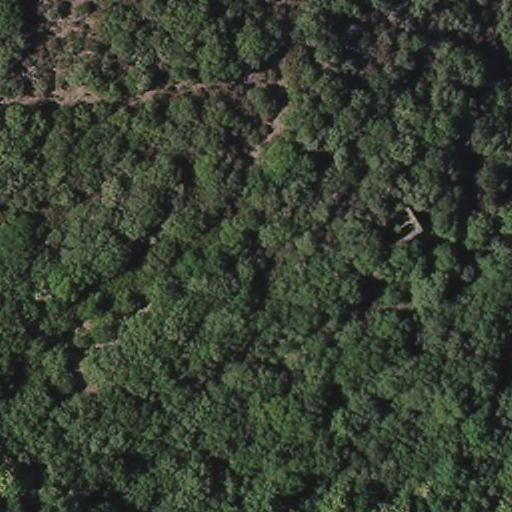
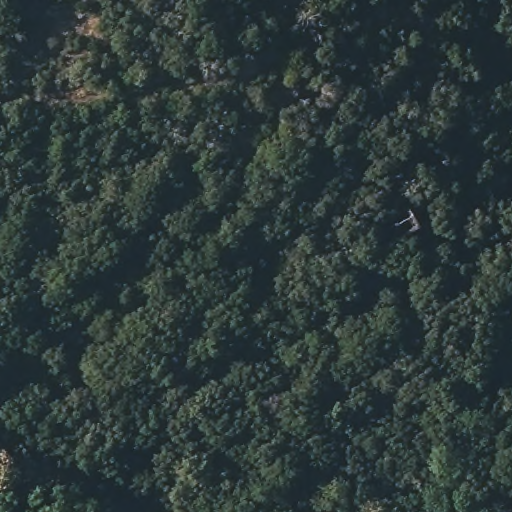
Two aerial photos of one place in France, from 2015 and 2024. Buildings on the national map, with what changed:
unchanged [(321,316),(345,300),(357,324),(332,339),(321,316)]

